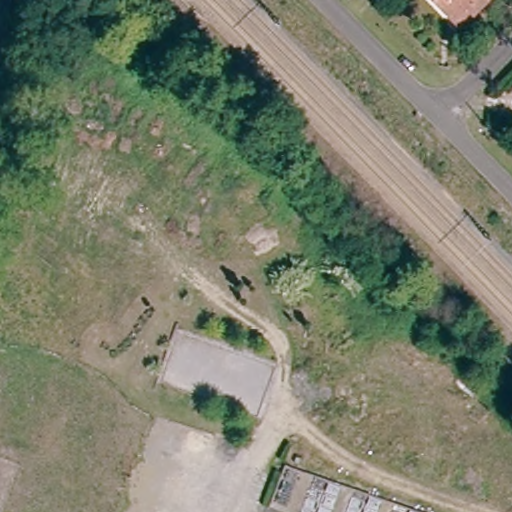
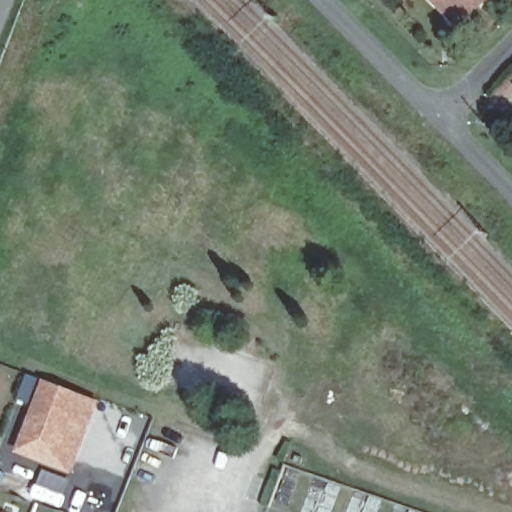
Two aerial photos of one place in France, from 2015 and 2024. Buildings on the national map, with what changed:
unchanged [(485,0),(465,20),(462,23),(439,0),(485,0)]
new [(15,452),(44,380),(101,402),(73,474),(15,452)]

